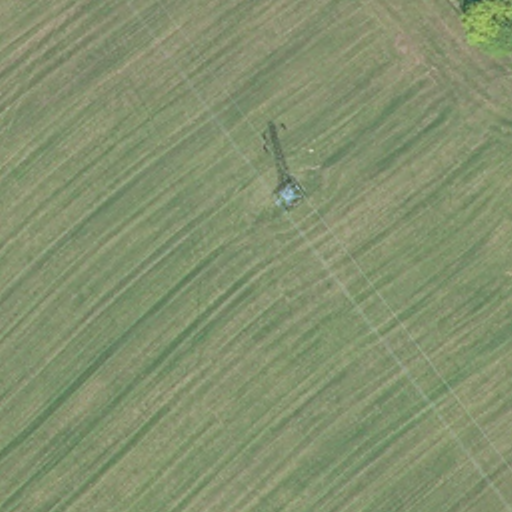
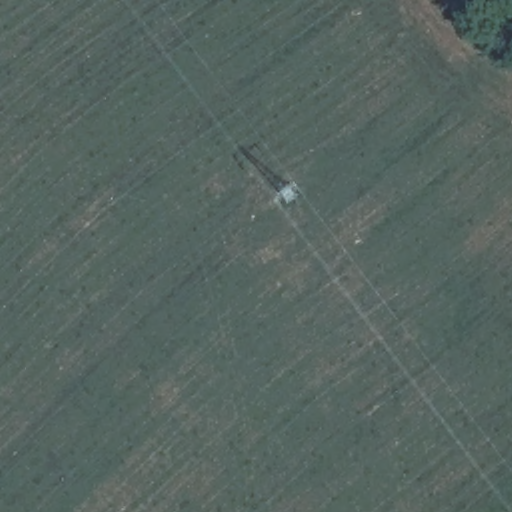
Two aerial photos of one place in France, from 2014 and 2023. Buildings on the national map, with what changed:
[]

